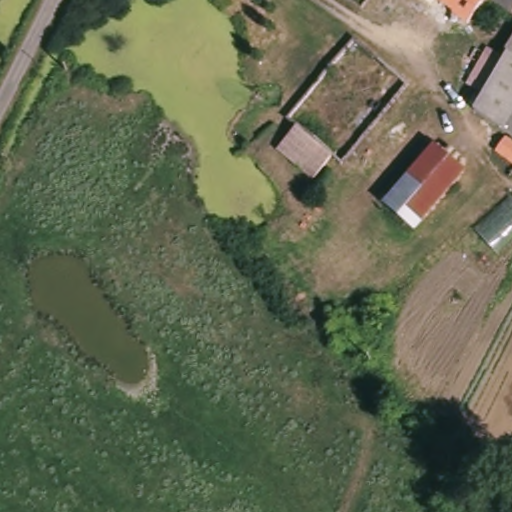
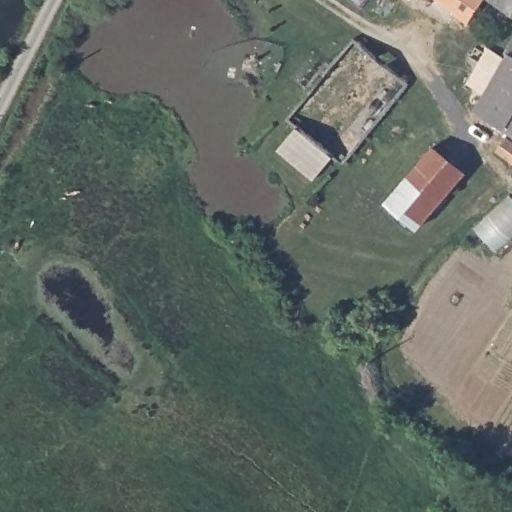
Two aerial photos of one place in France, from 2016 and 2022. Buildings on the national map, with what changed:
unchanged [(471,25),(438,0),(487,0),(471,25)]
unchanged [(512,16),(491,0),(512,0),(512,16)]
unchanged [(476,116),(488,96),(490,92),(469,81),(486,46),(505,55),(507,51),(512,45),(512,143),(502,135),(476,116)]
unchanged [(311,182),(274,152),(297,126),(333,157),(311,182)]
unchanged [(512,146),(512,170),(496,159),(508,144),(512,146)]
unchanged [(460,175),(417,231),(384,208),(425,150),(460,175)]

